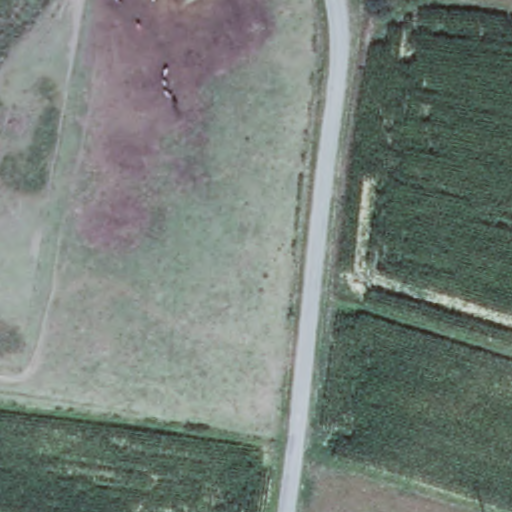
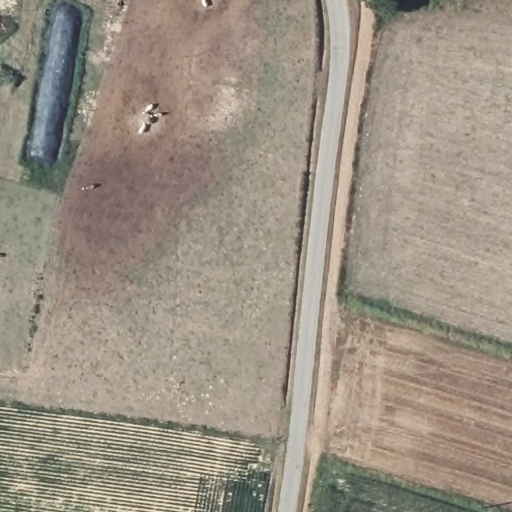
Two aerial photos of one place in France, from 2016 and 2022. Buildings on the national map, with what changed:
[]

